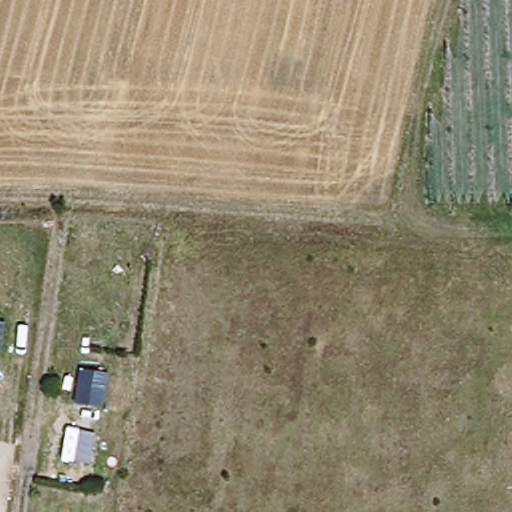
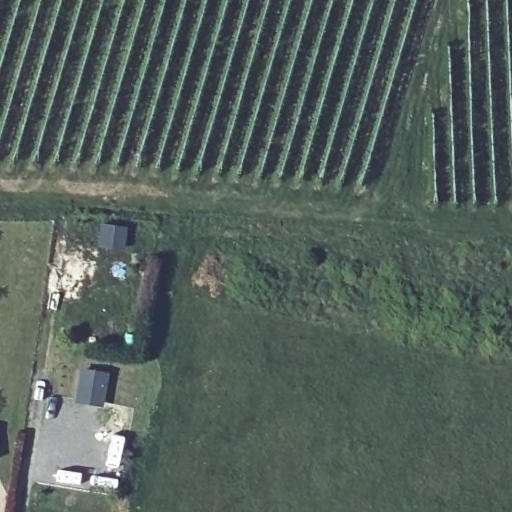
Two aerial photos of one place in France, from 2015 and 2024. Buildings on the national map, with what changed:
unchanged [(10,458),(0,458),(0,436),(13,437),(10,458)]

